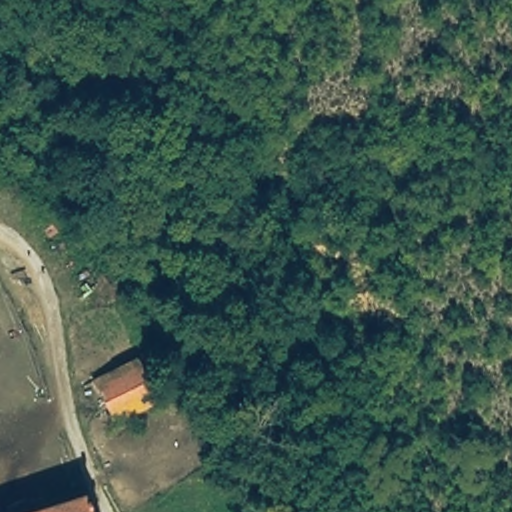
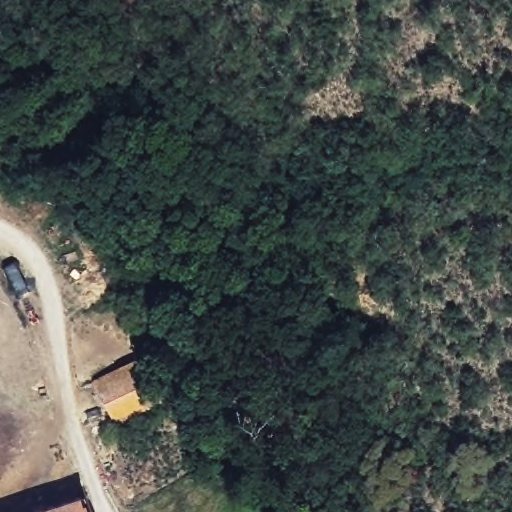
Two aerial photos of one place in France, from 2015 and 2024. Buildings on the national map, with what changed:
unchanged [(130,352),(156,393),(116,420),(90,378),(130,352)]
unchanged [(85,512),(17,512),(78,491),(85,512)]

